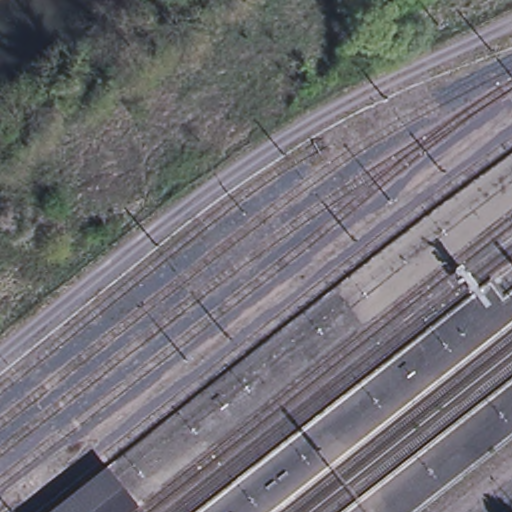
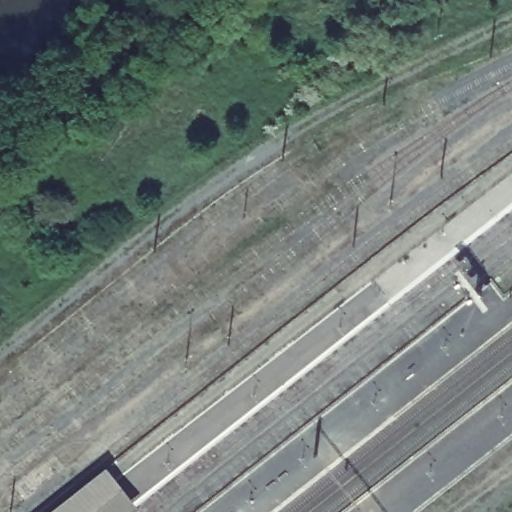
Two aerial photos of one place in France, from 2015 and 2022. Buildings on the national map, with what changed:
unchanged [(107,466),(136,505),(127,512),(48,512),(107,466)]

